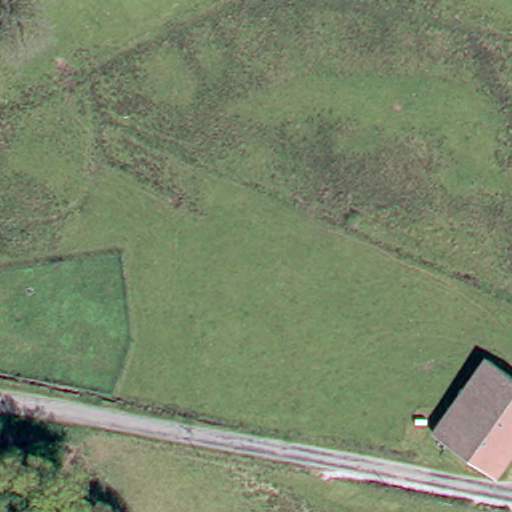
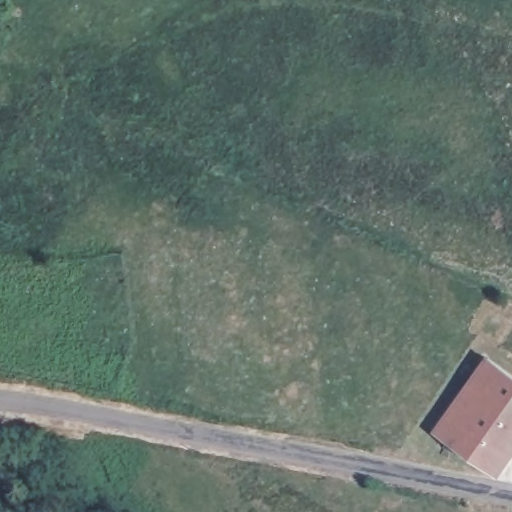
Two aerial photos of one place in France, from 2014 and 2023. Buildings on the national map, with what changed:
unchanged [(483,356),(488,360),(512,376),(512,445),(496,469),(432,431),(483,356)]

